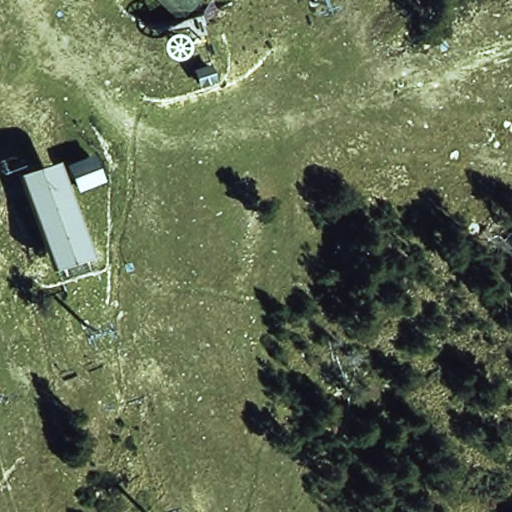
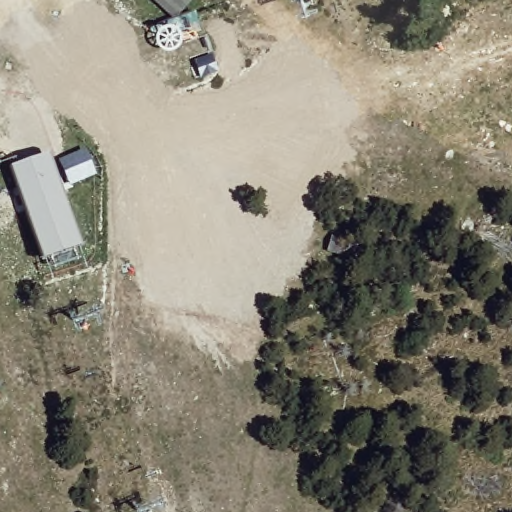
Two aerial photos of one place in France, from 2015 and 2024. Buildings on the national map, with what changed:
unchanged [(153,0),(191,0),(173,21),(153,0)]
unchanged [(71,187),(62,160),(85,152),(94,179),(71,187)]
unchanged [(82,257),(45,268),(11,170),(48,157),(82,257)]

